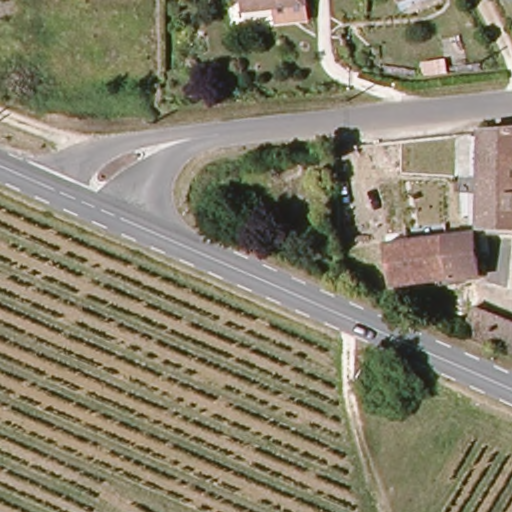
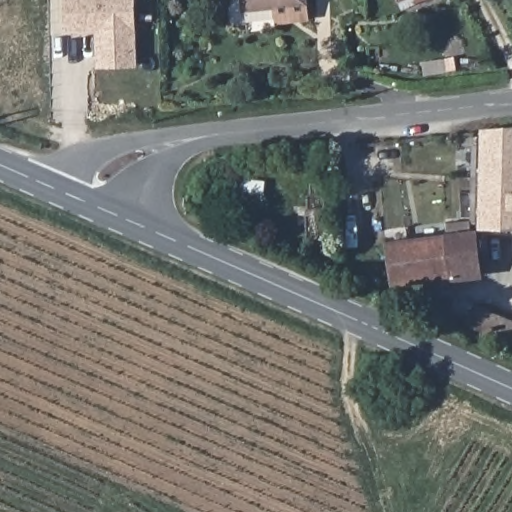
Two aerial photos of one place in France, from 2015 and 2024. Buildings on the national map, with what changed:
new [(137,67),(95,69),(95,33),(64,33),(63,0),(136,0),(137,67)]
unchanged [(300,6),(244,9),(243,0),(300,0),(300,6)]
unchanged [(401,10),(396,0),(420,0),(401,10)]
unchanged [(485,229),(485,135),(512,132),(512,228),(485,229)]
unchanged [(479,278),(450,282),(449,276),(391,285),(385,241),(470,232),(479,278)]
unchanged [(485,334),(491,315),(512,321),(512,343),(485,334)]

